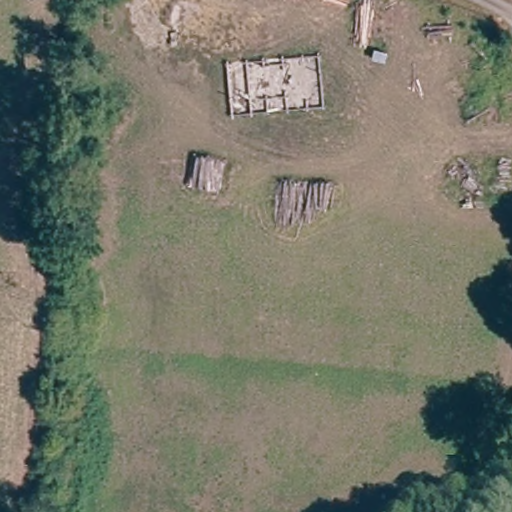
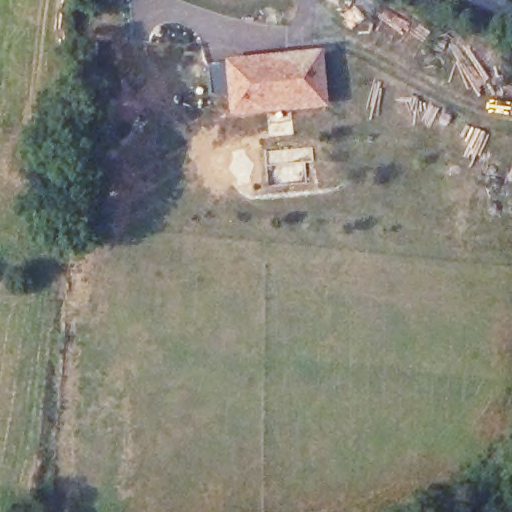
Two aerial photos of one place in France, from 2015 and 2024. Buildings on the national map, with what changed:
new [(324,51),(329,110),(230,120),(225,60),(324,51)]

